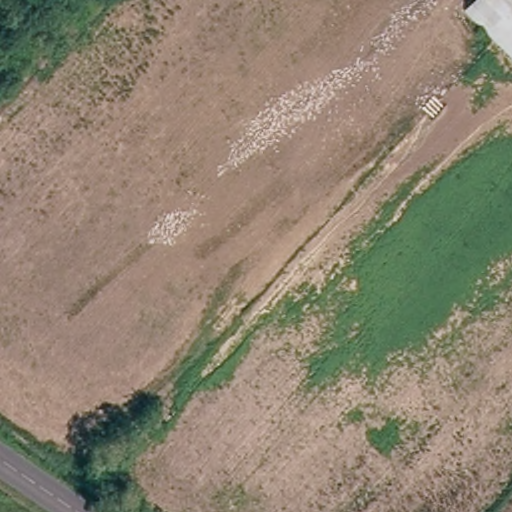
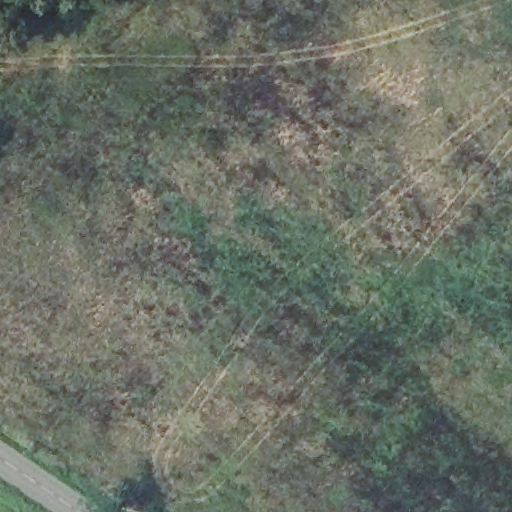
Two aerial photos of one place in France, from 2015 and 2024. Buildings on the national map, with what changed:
demolished [(512,0),(512,54),(467,8),(475,0),(512,0)]

